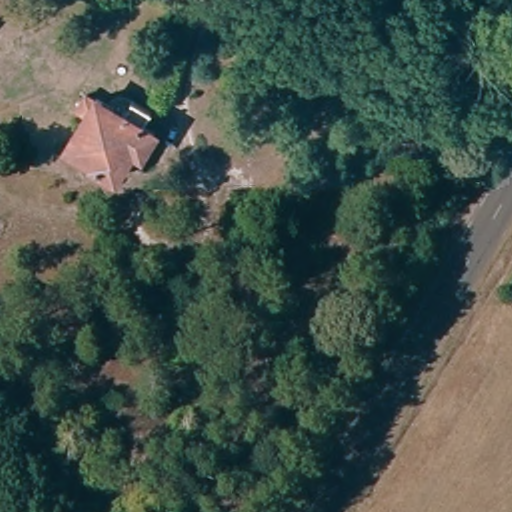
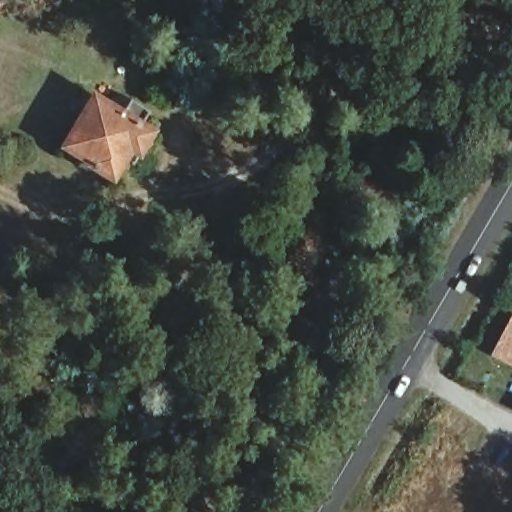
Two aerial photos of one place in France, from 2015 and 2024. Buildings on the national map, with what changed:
unchanged [(4,0),(0,6),(0,0),(4,0)]
unchanged [(144,165),(135,160),(117,189),(96,176),(97,174),(70,158),(89,125),(80,120),(89,105),(98,111),(100,108),(127,125),(135,111),(154,121),(146,136),(157,143),(144,165)]
new [(512,319),(512,366),(492,356),(512,319)]

